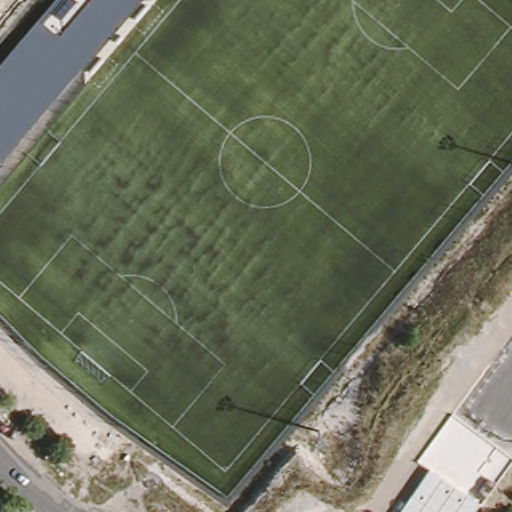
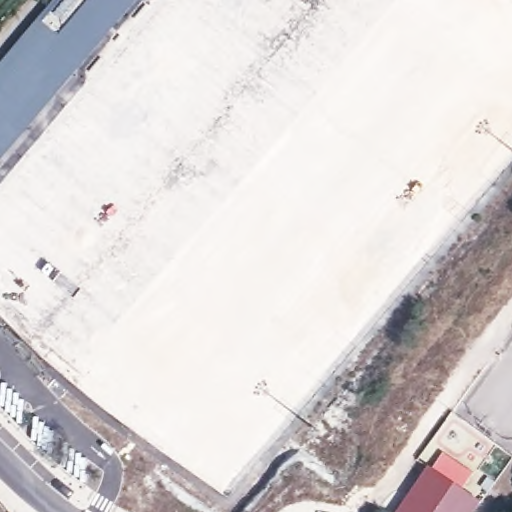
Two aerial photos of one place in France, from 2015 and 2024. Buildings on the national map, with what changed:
unchanged [(1,159),(0,158),(0,64),(54,0),(135,0),(1,159)]
unchanged [(480,502),(472,512),(398,512),(429,468),(480,502)]

